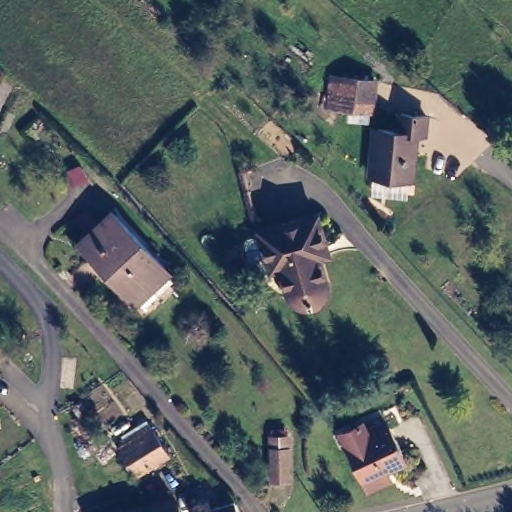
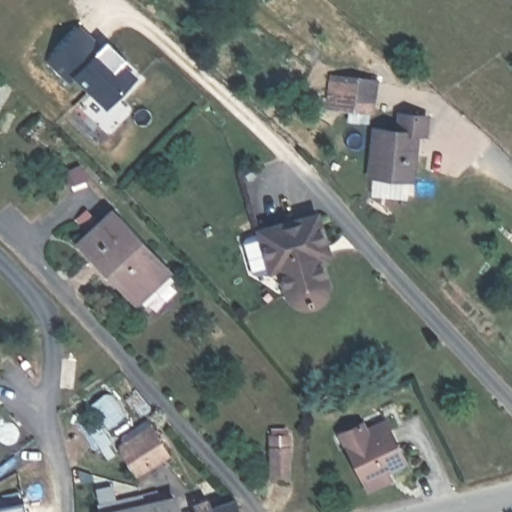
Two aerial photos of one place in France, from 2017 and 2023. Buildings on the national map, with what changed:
new [(75,78),(68,83),(46,60),(83,24),(103,46),(109,40),(128,59),(122,65),(139,80),(107,109),(75,78)]
unchanged [(379,112),(350,109),(340,107),(343,77),(355,78),(383,82),(379,112)]
unchanged [(395,138),(398,118),(427,123),(425,141),(412,140),(409,161),(413,162),(408,188),(369,181),(375,136),(395,138)]
unchanged [(323,237),(328,254),(320,257),(327,281),(321,282),(322,287),(322,292),(319,297),(314,302),(308,304),(303,303),(297,301),(294,298),(291,292),(287,294),(278,270),(270,272),(257,232),(317,213),(323,237)]
unchanged [(139,297),(88,250),(117,218),(168,268),(175,274),(146,304),(139,297)]
unchanged [(147,425),(164,448),(135,471),(117,448),(147,425)]
unchanged [(365,437),(383,427),(387,434),(405,469),(386,480),(389,486),(371,496),(342,442),(361,431),(365,437)]
unchanged [(280,484),(277,453),(277,439),(293,439),(294,452),(295,484),(280,484)]
demolished [(0,505),(0,479),(39,467),(52,512),(3,512),(0,505)]
unchanged [(243,512),(201,512),(200,508),(238,497),(239,497),(243,512)]
new [(26,512),(0,512),(0,507),(23,500),(26,512)]
unchanged [(137,505),(138,512),(109,512),(137,505)]
unchanged [(178,512),(153,512),(173,506),(176,506),(178,512)]

